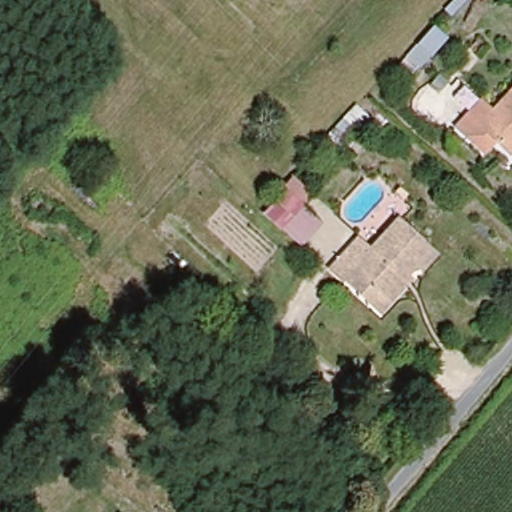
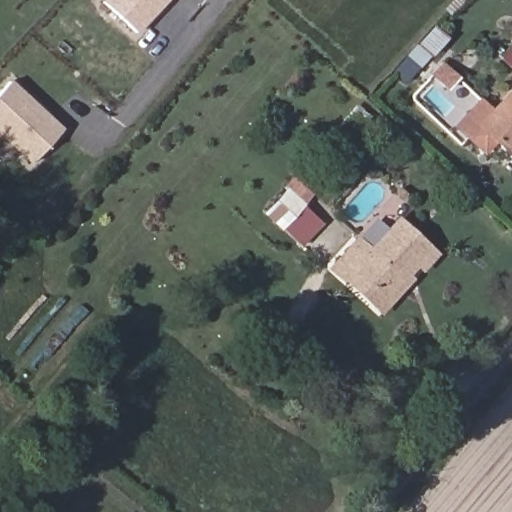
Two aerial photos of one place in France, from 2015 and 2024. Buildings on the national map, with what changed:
new [(103,0),(169,0),(137,35),(101,2),(103,0)]
unchanged [(432,24),(446,37),(409,79),(394,68),(432,24)]
new [(0,137),(0,93),(11,80),(63,129),(30,165),(0,137)]
unchanged [(472,103),(484,115),(512,87),(512,151),(508,155),(489,139),(476,152),(449,126),(461,114),(472,103)]
unchanged [(354,103),(370,116),(340,147),(325,134),(354,103)]
unchanged [(293,176),(313,194),(303,204),(323,222),(299,247),(281,231),(259,212),(293,176)]
unchanged [(335,268),(361,240),(374,248),(399,221),(438,256),(427,270),(421,266),(386,304),(381,309),(348,279),(335,268)]

